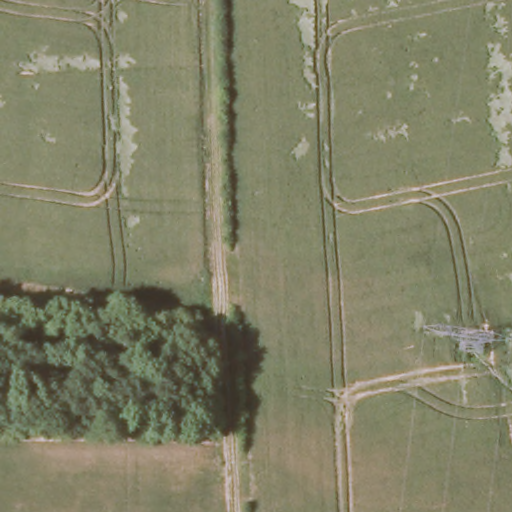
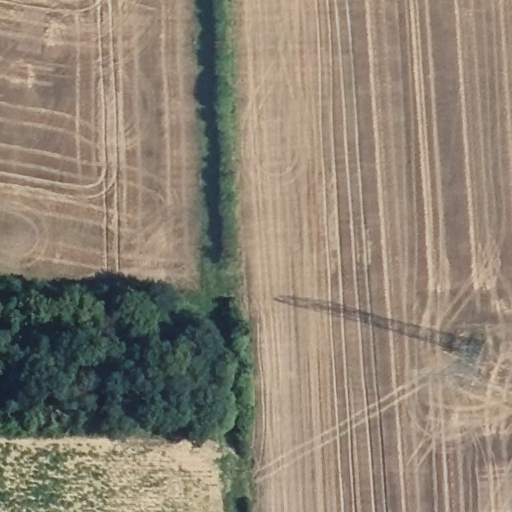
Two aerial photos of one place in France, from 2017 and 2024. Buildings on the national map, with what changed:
[]

